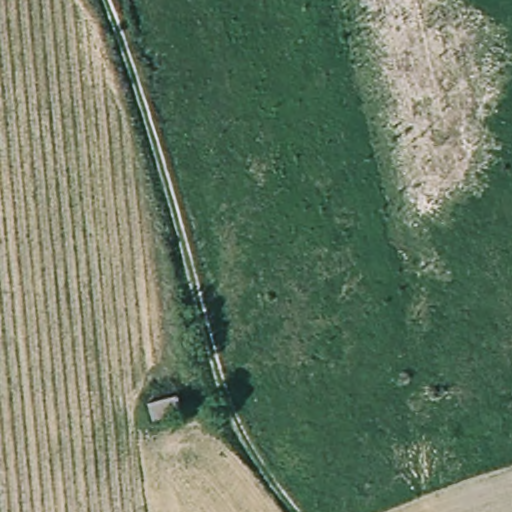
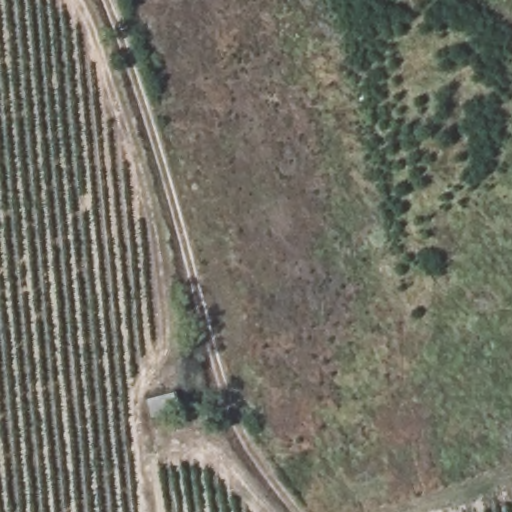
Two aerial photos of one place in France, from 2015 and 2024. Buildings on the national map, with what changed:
unchanged [(178,392),(185,412),(154,420),(149,400),(178,392)]

